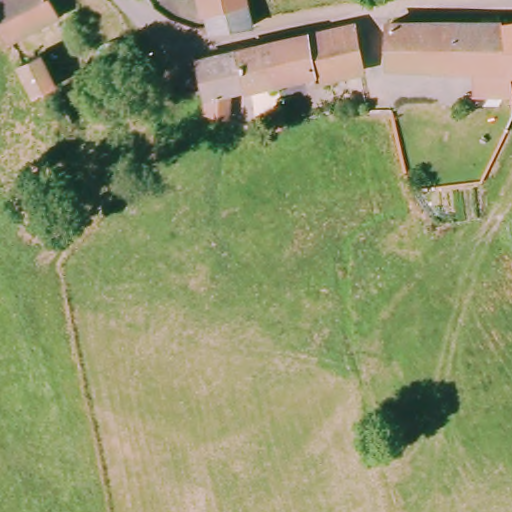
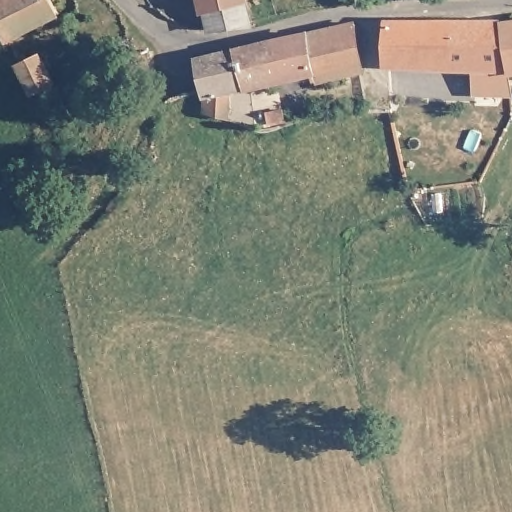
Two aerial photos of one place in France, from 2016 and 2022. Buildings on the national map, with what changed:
unchanged [(0,0),(52,0),(58,10),(6,37),(0,27),(0,0)]
unchanged [(205,32),(200,0),(244,0),(249,23),(250,29),(205,32)]
unchanged [(200,60),(352,23),(359,68),(341,77),(312,85),(308,78),(284,83),(224,94),(220,118),(203,114),(203,90),(200,60)]
unchanged [(510,74),(482,72),(392,66),(392,29),(398,25),(502,25),(502,28),(510,74)]
unchanged [(507,28),(512,27),(512,70),(507,28)]
unchanged [(19,67),(40,57),(56,87),(35,98),(19,67)]
unchanged [(268,129),(264,121),(281,116),(280,133),(268,129)]

